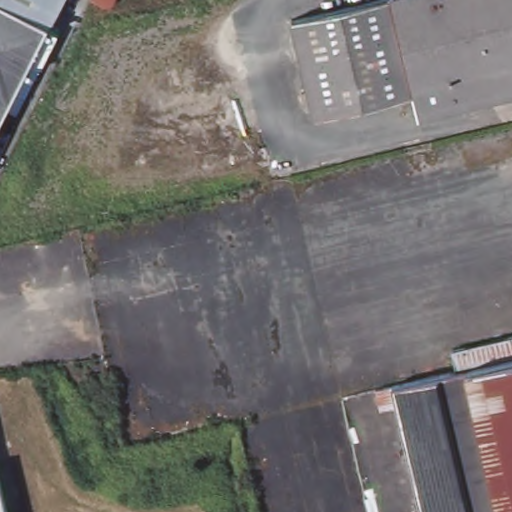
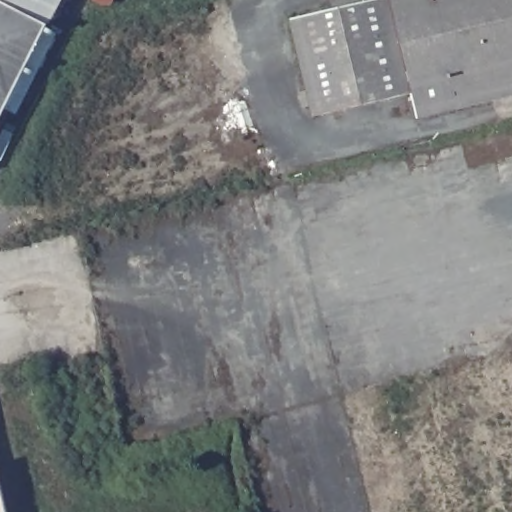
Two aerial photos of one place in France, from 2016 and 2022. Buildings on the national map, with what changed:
unchanged [(67,0),(0,131),(0,0),(67,0)]
unchanged [(512,0),(512,95),(414,118),(407,94),(307,116),(285,21),(377,0),(512,0)]
demolished [(451,348),(512,334),(512,512),(421,512),(393,394),(390,385),(456,370),(451,348)]
unchanged [(7,512),(0,512),(0,484),(7,512)]

